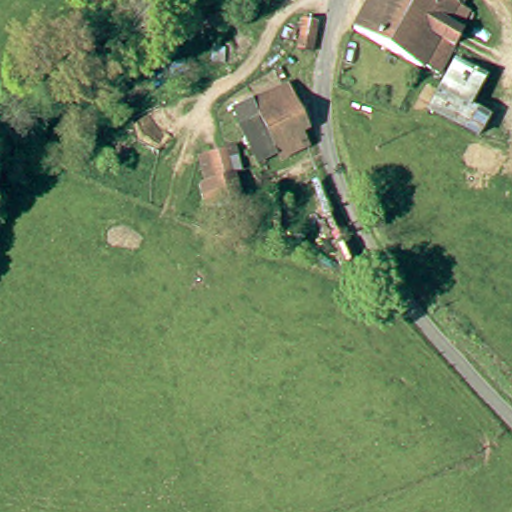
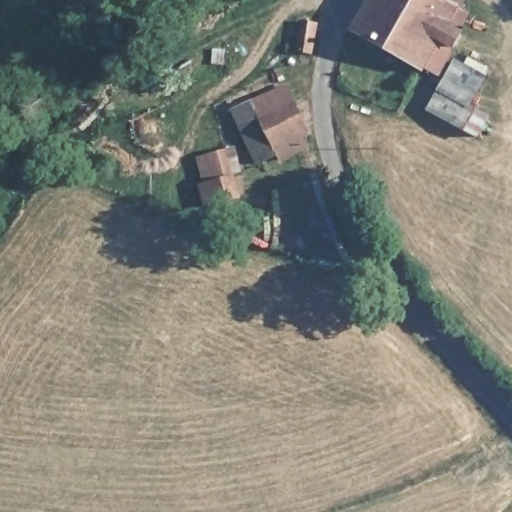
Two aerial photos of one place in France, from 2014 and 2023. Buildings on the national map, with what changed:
unchanged [(467,12),(454,38),(469,46),(444,90),(427,80),(424,84),(357,44),(379,0),(441,0),(441,1),(467,12)]
unchanged [(303,46),(307,32),(312,16),(322,19),(317,50),(303,46)]
unchanged [(492,73),(477,103),(493,111),(482,132),(459,120),(440,110),(466,60),(477,66),(492,73)]
unchanged [(291,96),(302,126),(306,126),(309,140),(304,143),(310,158),(282,169),(277,164),(259,170),(237,118),(291,96)]
unchanged [(235,153),(249,196),(218,206),(211,186),(217,183),(211,159),(235,153)]

